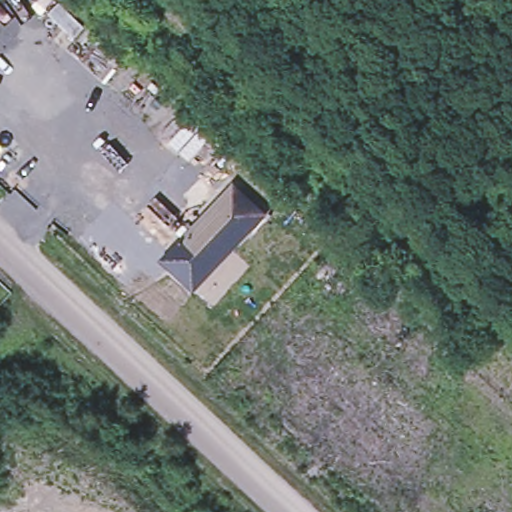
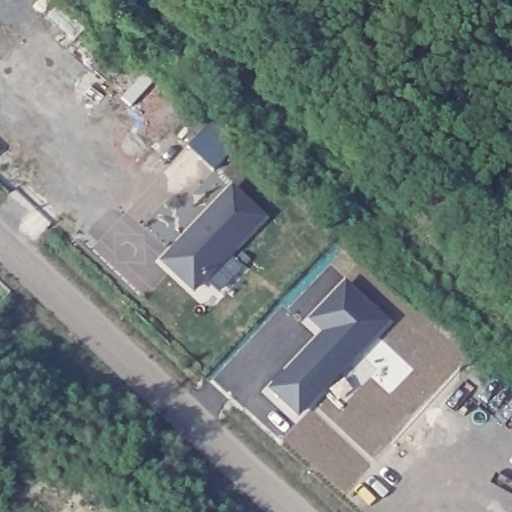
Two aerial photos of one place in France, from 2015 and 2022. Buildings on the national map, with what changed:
new [(240,144),(217,171),(192,148),(212,120),(240,144)]
unchanged [(191,287),(169,267),(168,251),(230,186),(260,214),(191,287)]
new [(387,319),(301,412),(270,388),(320,330),(307,318),(343,279),(387,319)]

